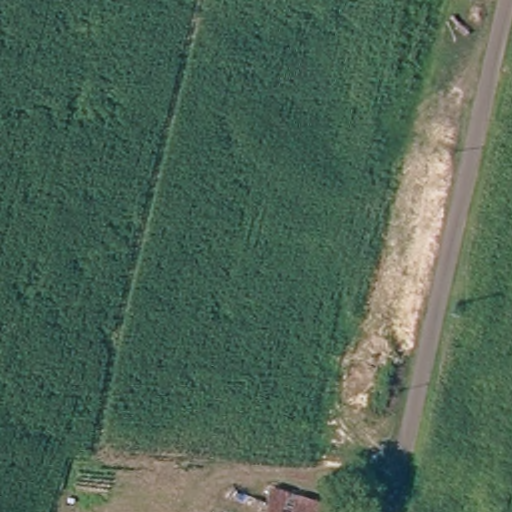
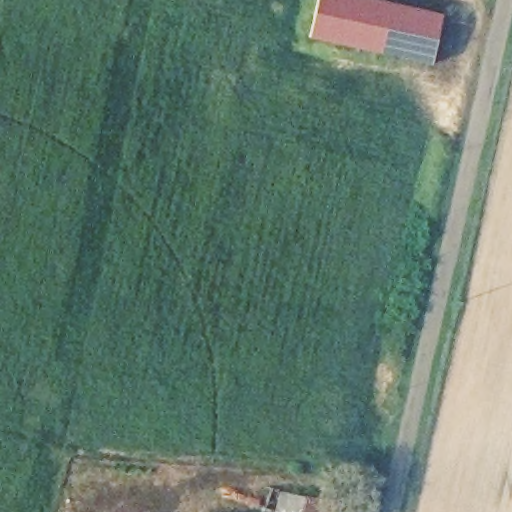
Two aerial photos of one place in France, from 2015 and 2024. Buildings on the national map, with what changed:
new [(318,0),(382,0),(443,13),(432,63),(310,37),(318,0)]
unchanged [(334,511),(334,512),(304,512),(307,502),(334,511)]

